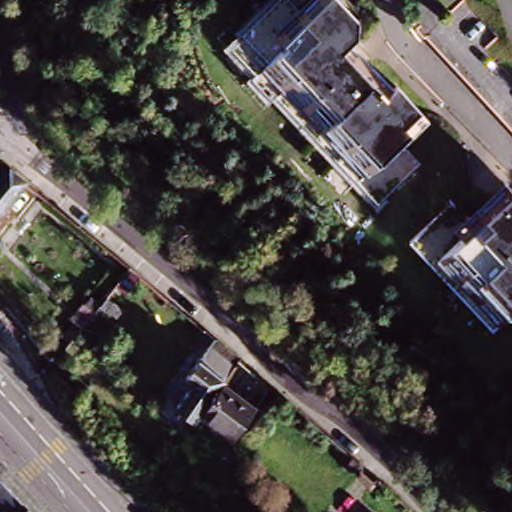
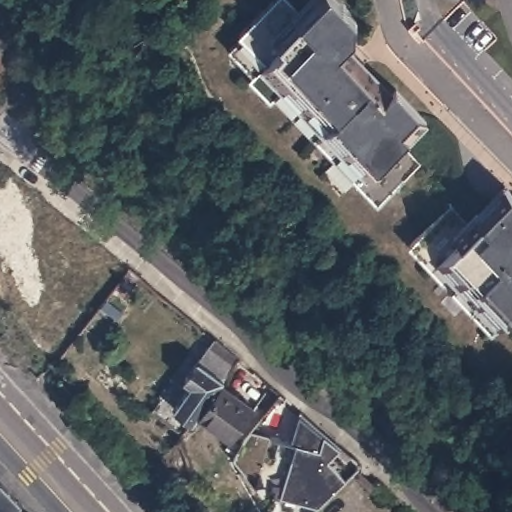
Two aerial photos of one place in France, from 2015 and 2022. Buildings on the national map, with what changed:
unchanged [(361,21),(360,38),(353,45),(368,62),(363,67),(391,96),(402,87),(431,119),(404,146),(425,168),(382,206),(348,170),(300,119),(259,75),(233,47),(247,35),(244,31),(277,0),(295,0),(302,7),(311,0),(342,0),(361,21)]
unchanged [(29,182),(0,216),(0,167),(5,162),(29,182)]
unchanged [(492,336),(442,283),(408,247),(450,209),(470,229),(508,193),(512,197),(512,317),(492,336)]
unchanged [(138,278),(122,297),(112,288),(108,293),(104,288),(123,266),(128,270),(135,276),(138,278)]
unchanged [(121,307),(110,321),(95,307),(97,306),(106,295),(121,307)]
unchanged [(23,343),(12,355),(6,362),(0,356),(0,336),(5,331),(7,328),(8,327),(23,343)]
unchanged [(192,423),(190,427),(187,430),(161,408),(192,370),(207,351),(220,361),(233,372),(217,391),(215,395),(192,423)]
unchanged [(222,450),(192,423),(215,395),(245,421),(222,450)]
unchanged [(73,435),(67,428),(91,407),(102,420),(79,441),(73,435)]
new [(280,438),(301,415),(342,451),(332,463),(350,479),(314,512),(287,512),(250,480),(275,452),(284,441),(280,438)]
unchanged [(15,500),(24,508),(20,512),(0,512),(0,482),(1,483),(15,500)]

